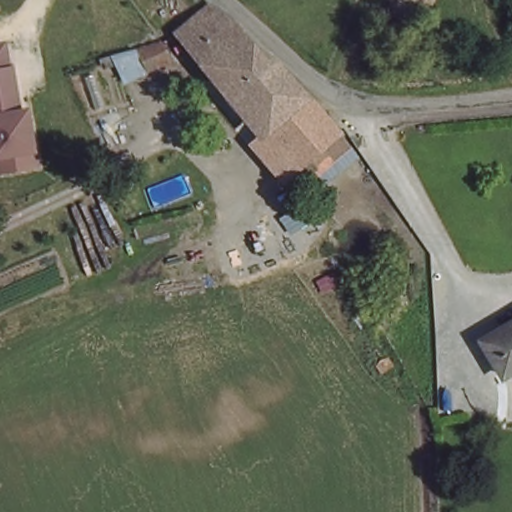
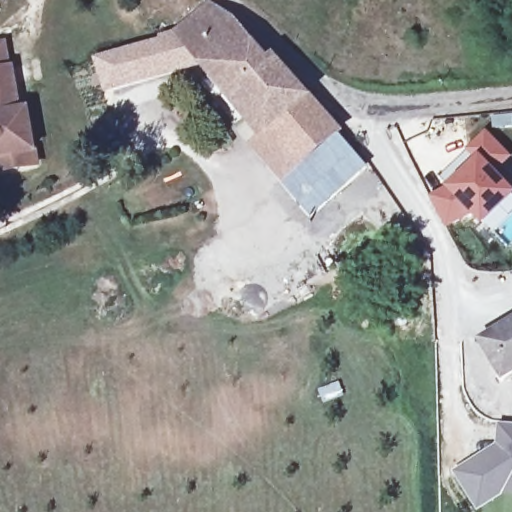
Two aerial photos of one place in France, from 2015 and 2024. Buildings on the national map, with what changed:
unchanged [(198,49),(192,54),(177,33),(211,6),(230,22),(198,49)]
unchanged [(268,65),(271,63),(305,100),(270,132),(198,49),(230,22),(268,65)]
unchanged [(2,40),(7,64),(16,107),(24,105),(26,114),(35,161),(0,167),(0,40),(2,40)]
demolished [(169,65),(134,73),(129,55),(157,47),(169,65)]
unchanged [(322,118),(285,150),(270,132),(305,100),(322,118)]
unchanged [(337,135),(299,167),(285,150),(322,118),(337,135)]
new [(500,204),(483,221),(472,210),(448,223),(433,195),(449,187),(457,179),(454,175),(475,154),(469,148),(485,132),(508,155),(498,164),(512,178),(506,184),(512,192),(500,204)]
unchanged [(475,345),(512,322),(512,367),(494,378),(475,345)]
new [(454,470),(476,456),(496,443),(498,423),(512,424),(512,490),(502,489),(490,497),(477,506),(472,497),(454,470)]

